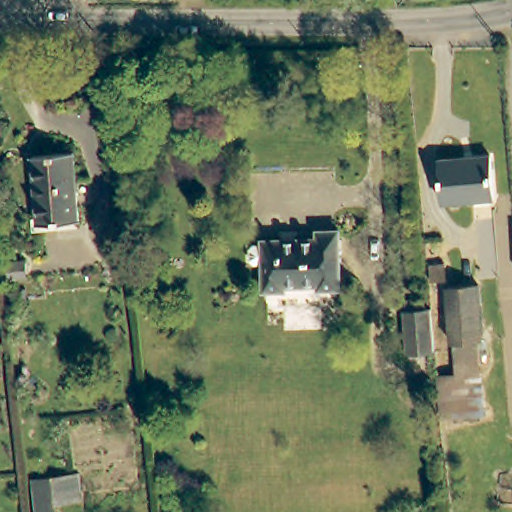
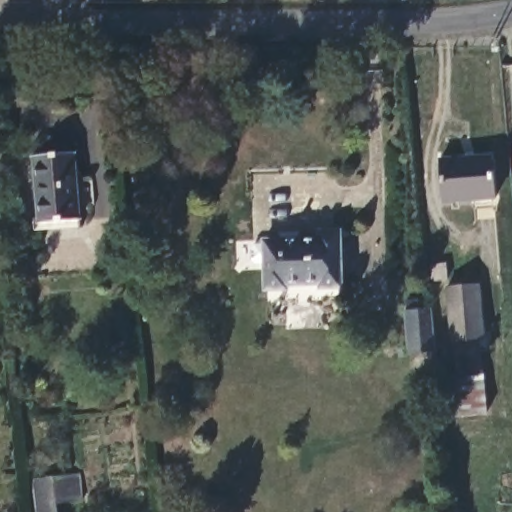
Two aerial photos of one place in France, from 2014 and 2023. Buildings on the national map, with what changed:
unchanged [(78,222),(40,224),(34,159),(72,155),(78,222)]
unchanged [(492,198),(442,202),(440,163),(490,158),(492,198)]
unchanged [(318,291),(316,286),(287,287),(287,291),(265,292),(263,242),(317,240),(317,232),(338,232),(339,290),(318,291)]
unchanged [(452,344),(447,287),(485,287),(487,340),(481,341),(485,393),(454,389),(452,344)]
unchanged [(404,302),(431,301),(436,353),(410,356),(404,302)]
unchanged [(56,512),(34,512),(30,481),(77,476),(81,502),(56,505),(56,512)]

